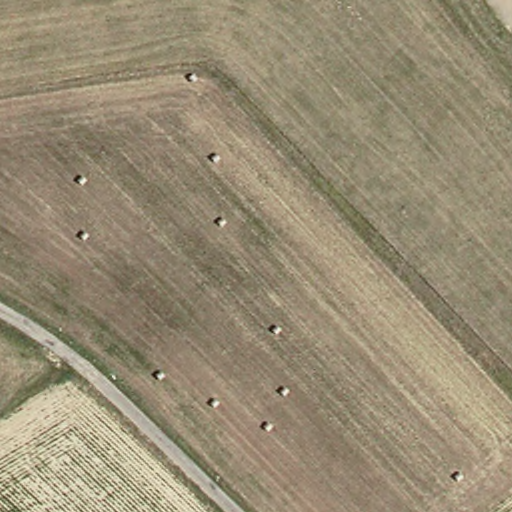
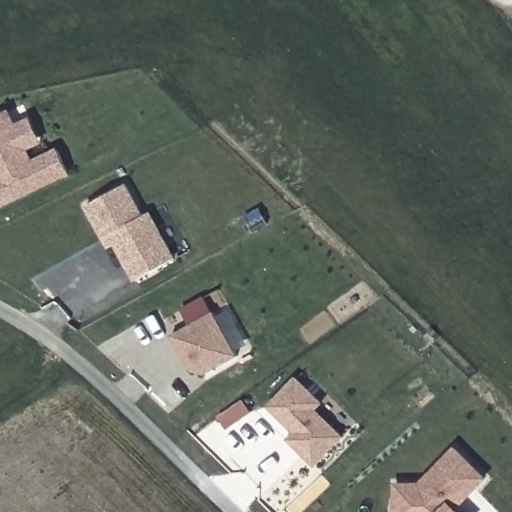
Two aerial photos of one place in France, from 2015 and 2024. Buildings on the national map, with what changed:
new [(29,121),(39,143),(24,150),(30,164),(56,153),(66,176),(0,206),(0,116),(8,113),(14,128),(29,121)]
new [(104,237),(101,239),(85,205),(125,187),(140,218),(149,214),(172,263),(134,280),(116,242),(107,245),(104,237)]
new [(180,312),(202,300),(210,314),(189,327),(180,312)]
new [(211,314),(235,357),(203,375),(188,370),(170,337),(211,314)]
new [(293,445),(299,439),(266,406),(292,378),(316,402),(310,409),(337,435),(311,463),(293,445)]
new [(216,417),(240,401),(247,412),(224,428),(216,417)]
new [(299,439),(293,445),(286,438),(292,432),(299,439)]
new [(418,487),(455,453),(485,482),(453,512),(393,512),(393,487),(418,487)]

